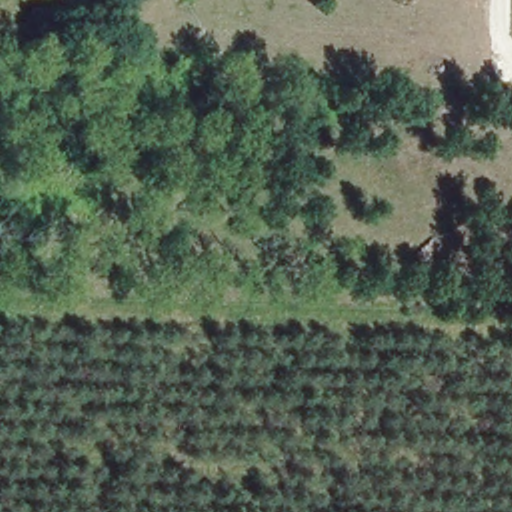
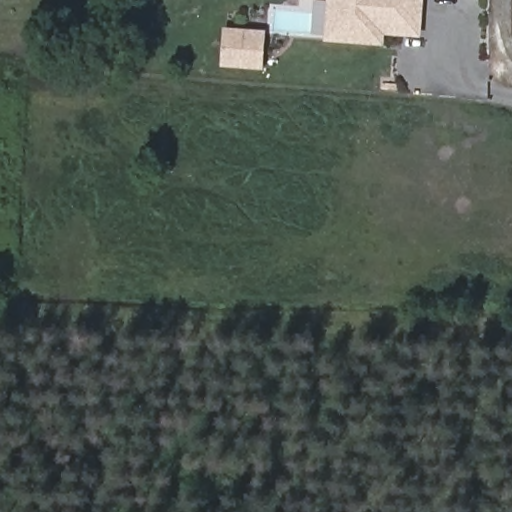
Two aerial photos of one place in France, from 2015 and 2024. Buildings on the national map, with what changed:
new [(385,45),(326,41),(329,0),(424,0),(422,37),(386,35),(385,45)]
new [(265,69),(221,66),(224,26),(268,30),(265,69)]

